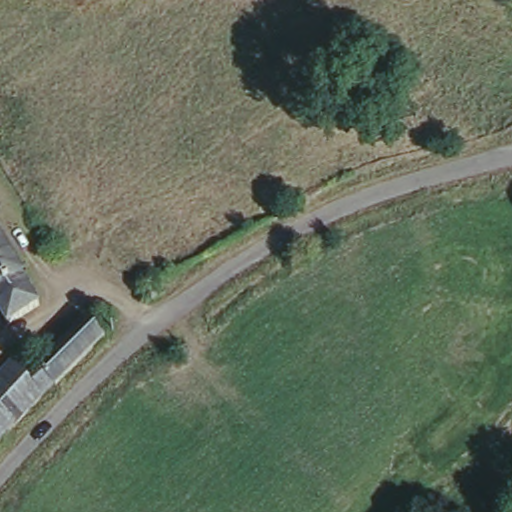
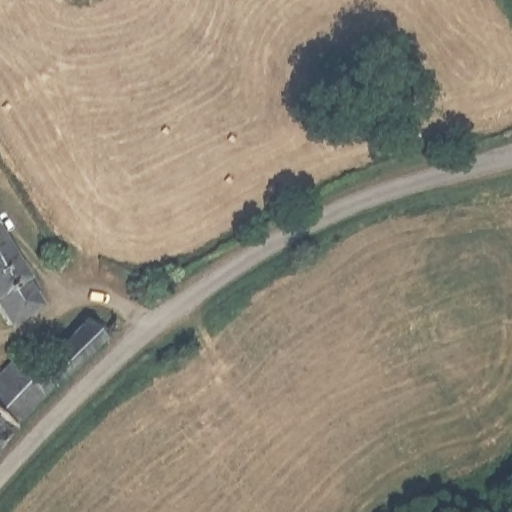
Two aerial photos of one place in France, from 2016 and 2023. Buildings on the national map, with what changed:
unchanged [(9,267),(34,307),(5,323),(0,316),(0,249),(10,265),(9,267)]
unchanged [(34,363),(80,321),(86,328),(96,321),(102,328),(95,335),(99,340),(93,344),(42,393),(0,438),(0,375),(23,351),(34,363)]

